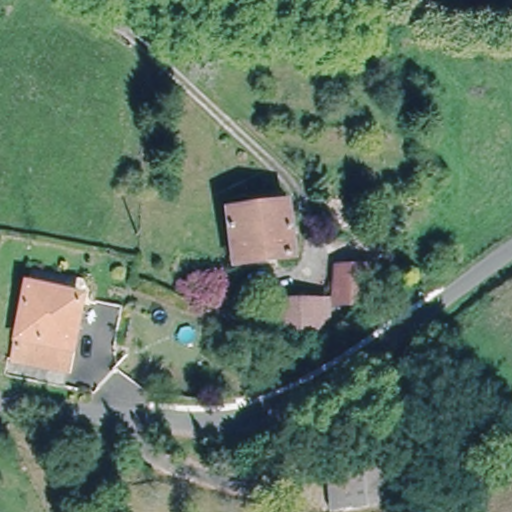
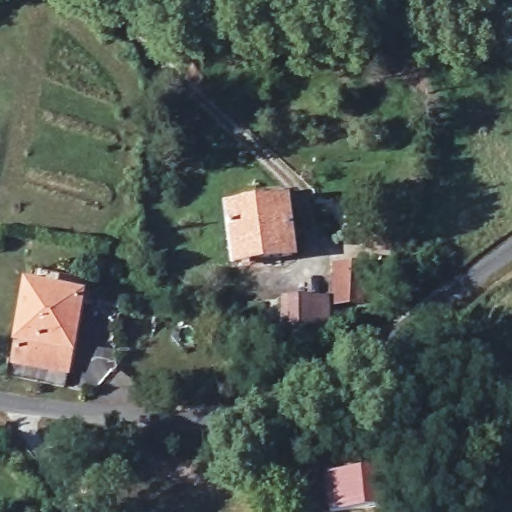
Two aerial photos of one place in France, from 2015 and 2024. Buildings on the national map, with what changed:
unchanged [(296,254),(232,261),(225,212),(269,207),(269,194),(290,193),(296,254)]
unchanged [(340,300),(342,263),(374,262),(373,301),(340,300)]
unchanged [(83,306),(68,378),(14,364),(31,292),(83,306)]
unchanged [(326,293),(328,335),(284,336),(284,294),(326,293)]
unchanged [(330,474),(385,469),(389,500),(331,511),(330,474)]

